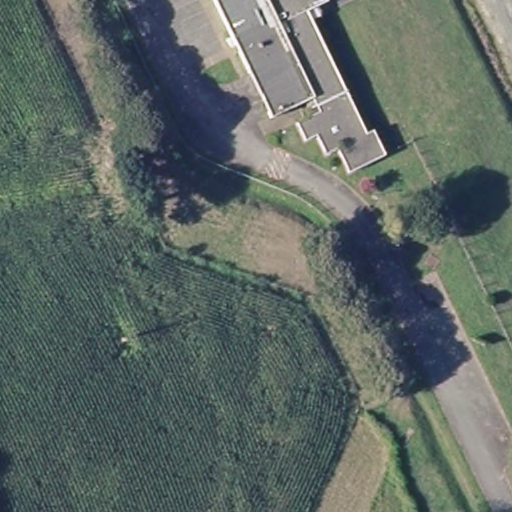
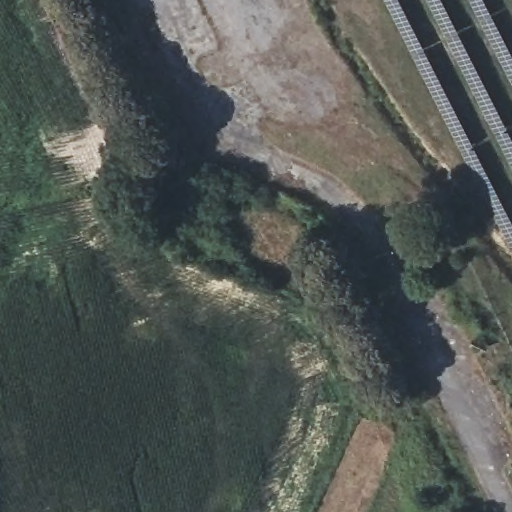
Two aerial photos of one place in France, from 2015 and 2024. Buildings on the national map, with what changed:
demolished [(219,13),(212,0),(220,0),(219,13)]
demolished [(220,0),(322,0),(323,1),(315,5),(320,15),(312,19),(371,136),(376,133),(387,153),(350,172),(338,150),(327,155),(317,136),(305,143),(295,124),(315,113),(305,97),(270,116),(219,13),(220,0)]

